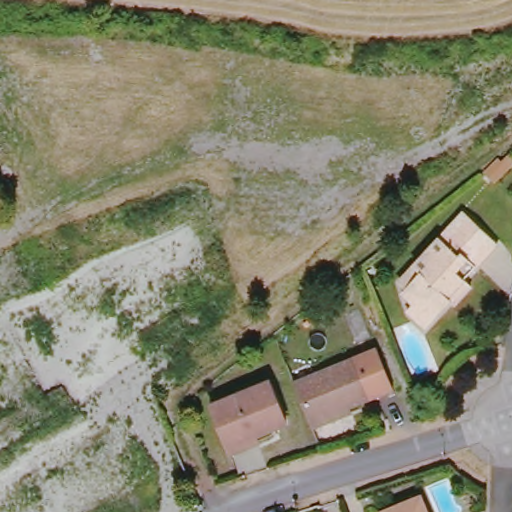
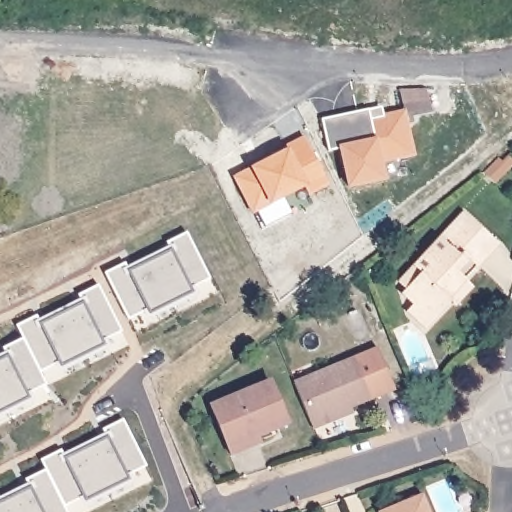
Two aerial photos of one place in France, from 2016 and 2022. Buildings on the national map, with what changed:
new [(368,110),(369,114),(382,111),(383,116),(404,112),(413,155),(379,162),(383,180),(349,187),(341,149),(329,151),(321,120),(368,110)]
new [(329,185),(309,195),(304,187),(253,212),(235,177),(287,151),(285,147),(304,137),(329,185)]
unchanged [(408,312),(414,305),(403,293),(407,289),(400,283),(414,267),(464,214),(498,245),(464,280),(472,287),(454,306),(451,302),(433,321),(426,329),(408,312)]
new [(194,287),(198,295),(148,320),(145,313),(128,320),(104,272),(124,262),(126,267),(167,246),(166,243),(187,232),(210,280),(194,287)]
new [(108,338),(111,348),(59,372),(55,365),(39,371),(47,386),(31,393),(34,400),(0,418),(0,354),(4,352),(3,348),(23,338),(16,325),(36,315),(38,318),(80,299),(78,294),(100,283),(123,332),(108,338)]
unchanged [(311,418),(294,378),(378,345),(394,385),(349,402),(351,407),(312,423),(311,418)]
demolished [(151,382),(109,404),(93,378),(136,349),(151,382)]
unchanged [(228,447),(211,406),(271,382),(287,423),(256,436),(259,444),(231,455),(228,447)]
new [(147,467),(128,477),(129,480),(84,502),(82,497),(62,506),(65,512),(0,512),(0,498),(28,484),(25,480),(45,470),(40,460),(62,450),(64,453),(101,429),(124,418),(147,467)]
unchanged [(428,512),(383,512),(421,496),(428,512)]

